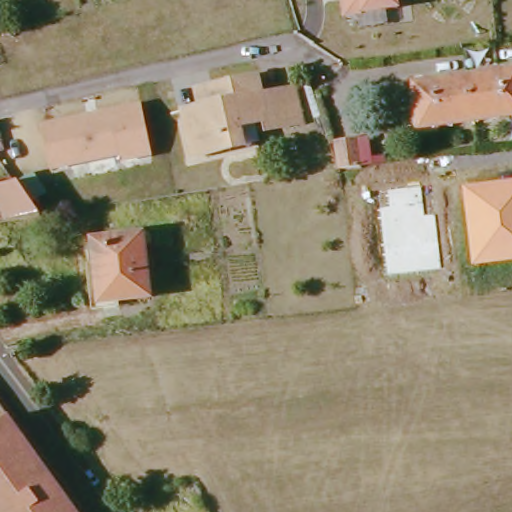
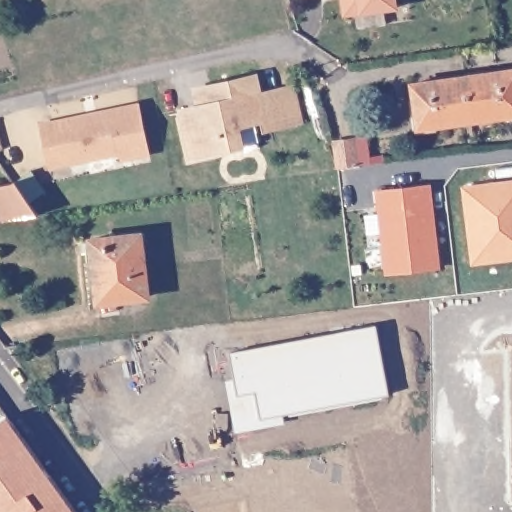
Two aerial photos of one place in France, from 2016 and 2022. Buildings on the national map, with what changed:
unchanged [(339,0),(394,0),(395,8),(358,13),(341,16),(339,0)]
unchanged [(461,78),(512,71),(512,115),(467,121),(461,78)]
unchanged [(181,130),(177,108),(194,105),(191,88),(205,85),(247,77),(251,95),(283,89),(289,120),(258,126),(256,119),(230,123),(234,145),(194,152),(185,154),(181,130)]
unchanged [(414,129),(408,86),(461,78),(467,121),(414,129)]
unchanged [(40,128),(85,118),(95,116),(137,107),(147,157),(117,163),(116,156),(71,166),(49,170),(46,154),(40,128)]
unchanged [(332,148),(350,146),(355,172),(335,175),(332,148)]
unchanged [(12,177),(28,168),(41,188),(26,198),(34,211),(0,217),(0,180),(10,178),(12,177)]
unchanged [(472,266),(463,186),(512,181),(512,261),(472,266)]
unchanged [(422,216),(432,215),(438,268),(383,276),(377,209),(387,208),(386,191),(420,186),(422,216)]
unchanged [(91,240),(140,234),(148,296),(91,303),(85,263),(93,262),(91,240)]
new [(390,399),(282,418),(285,424),(235,436),(225,381),(235,379),(231,353),(377,326),(390,399)]
unchanged [(67,512),(0,512),(0,421),(1,420),(67,512)]

